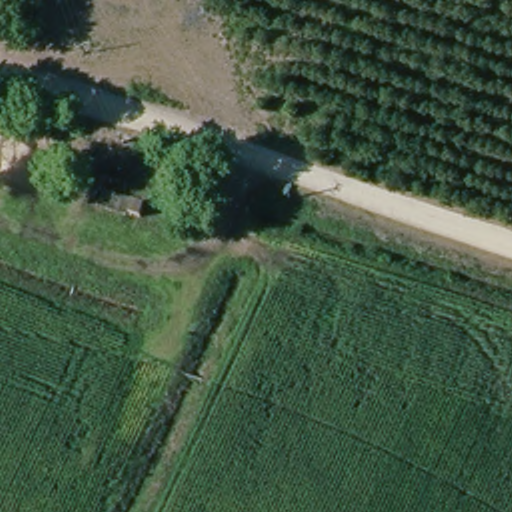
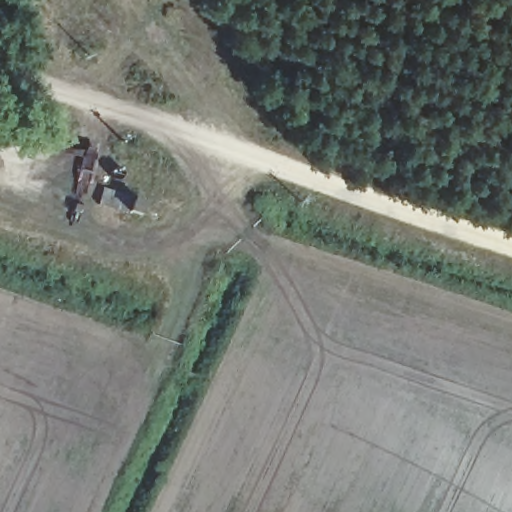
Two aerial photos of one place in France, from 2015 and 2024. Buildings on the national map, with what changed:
[]

